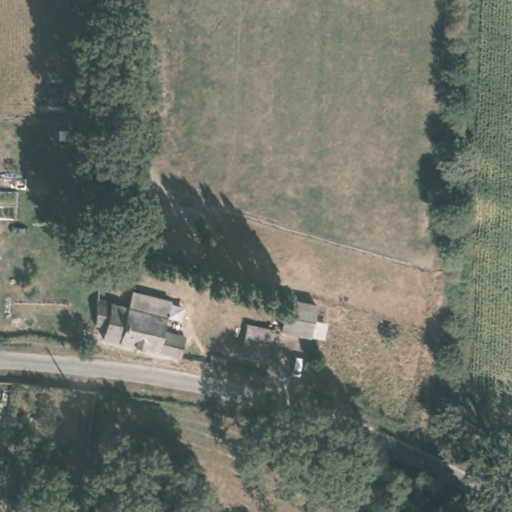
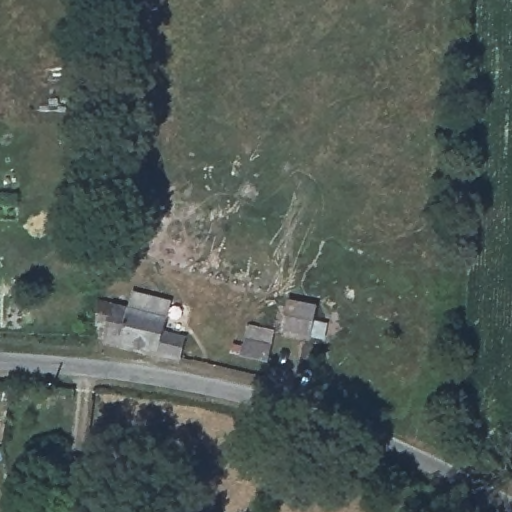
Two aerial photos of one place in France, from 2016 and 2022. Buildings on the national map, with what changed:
unchanged [(125,194),(145,198),(137,237),(117,233),(125,194)]
unchanged [(106,329),(97,327),(99,300),(130,308),(134,292),(172,302),(165,333),(186,338),(181,357),(104,339),(106,329)]
unchanged [(287,301),(317,306),(314,322),(327,325),(325,340),(282,331),(287,301)]
unchanged [(232,345),(244,347),(248,326),(276,332),(269,363),(241,357),(242,355),(231,353),(232,345)]
unchanged [(66,473),(66,493),(47,493),(46,473),(66,473)]

